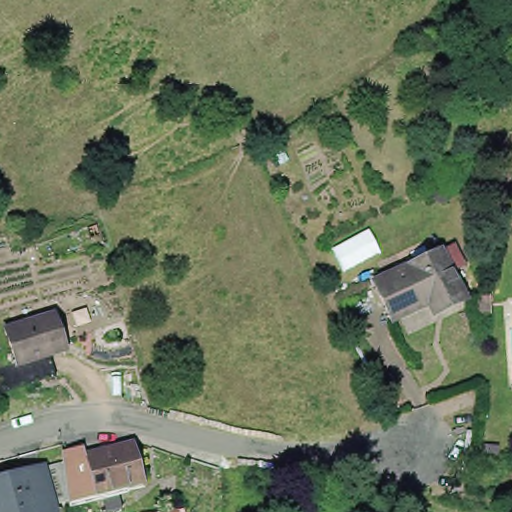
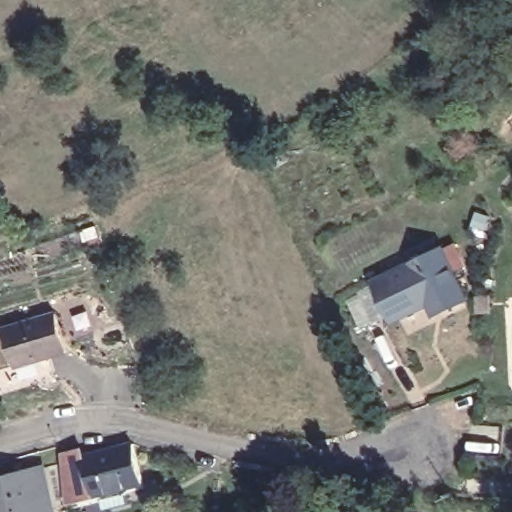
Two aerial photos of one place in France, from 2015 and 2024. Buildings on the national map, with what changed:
unchanged [(442,242),(467,293),(467,294),(465,295),(442,306),(415,256),(442,242)]
unchanged [(415,256),(442,306),(435,310),(430,299),(392,316),(380,290),(373,276),(415,256)]
unchanged [(474,291),(487,291),(487,309),(475,309),(474,291)]
unchanged [(40,317),(60,312),(69,349),(50,355),(20,362),(10,326),(40,317)]
unchanged [(110,509),(105,490),(100,491),(89,453),(92,452),(130,443),(137,441),(140,452),(147,475),(147,480),(132,483),(120,486),(126,505),(110,509)]
unchanged [(100,491),(67,500),(69,505),(52,509),(40,468),(60,463),(59,452),(80,447),(82,455),(89,453),(100,491)]
unchanged [(20,476),(19,473),(40,468),(52,512),(16,512),(10,478),(20,476)]
unchanged [(16,512),(0,512),(0,481),(10,478),(16,512)]

